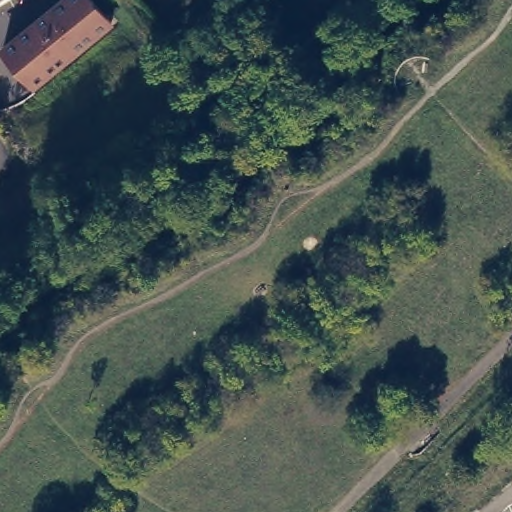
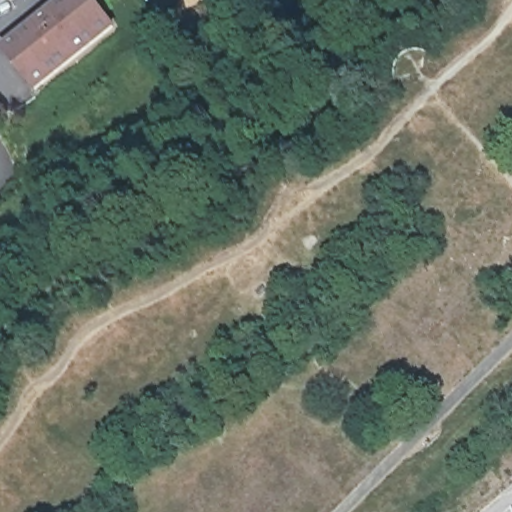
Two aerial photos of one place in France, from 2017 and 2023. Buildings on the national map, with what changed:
unchanged [(99,0),(111,15),(33,78),(3,41),(53,0),(99,0)]

